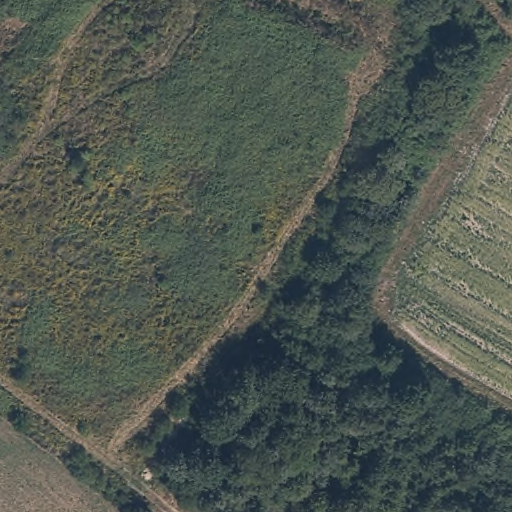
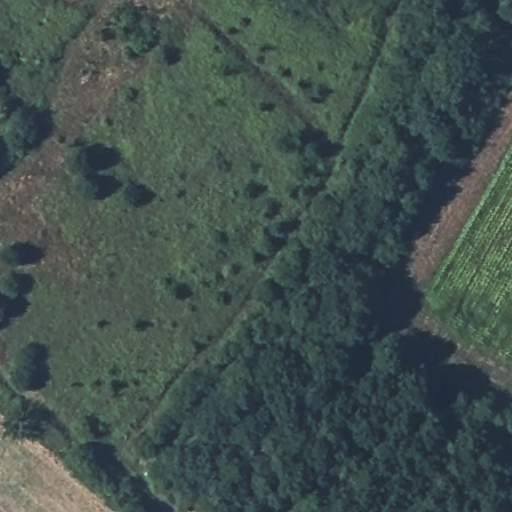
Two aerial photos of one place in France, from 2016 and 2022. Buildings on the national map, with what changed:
[]

